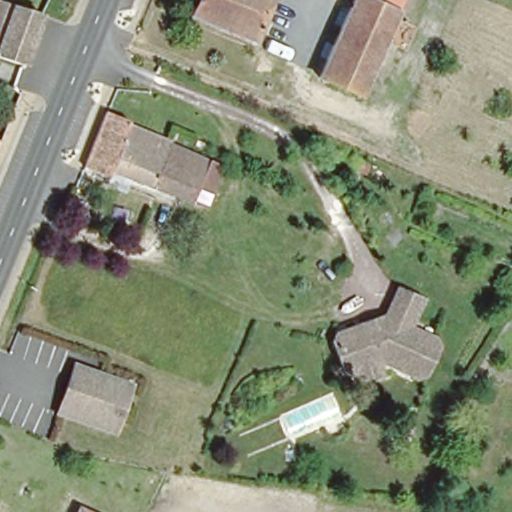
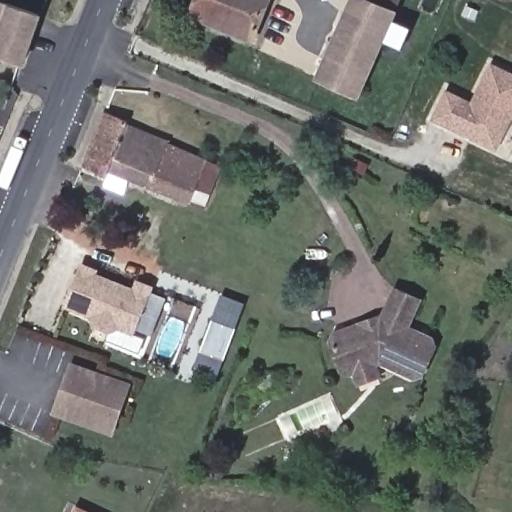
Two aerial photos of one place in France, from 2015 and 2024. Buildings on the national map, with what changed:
unchanged [(195,0),(265,0),(250,40),(189,16),(195,0)]
unchanged [(347,0),(372,0),(395,10),(363,89),(316,71),(347,0)]
unchanged [(17,64),(0,58),(0,2),(35,14),(17,64)]
new [(496,151),(432,120),(447,89),(473,101),(491,62),(512,72),(512,120),(496,151)]
unchanged [(115,98),(155,116),(146,138),(212,166),(193,209),(113,181),(110,186),(83,177),(115,98)]
unchanged [(0,140),(2,141),(0,147),(0,140)]
new [(136,334),(147,338),(140,354),(107,339),(110,332),(93,325),(90,317),(63,307),(80,261),(99,269),(97,273),(134,287),(137,279),(155,285),(136,334)]
unchanged [(410,327),(435,338),(434,349),(422,373),(412,375),(376,358),(345,371),(340,367),(331,336),(337,328),(361,320),(368,325),(382,320),(385,313),(388,314),(400,288),(422,299),(410,327)]
new [(225,361),(200,351),(222,293),(245,302),(225,361)]
unchanged [(132,387),(114,438),(54,415),(70,363),(132,387)]

